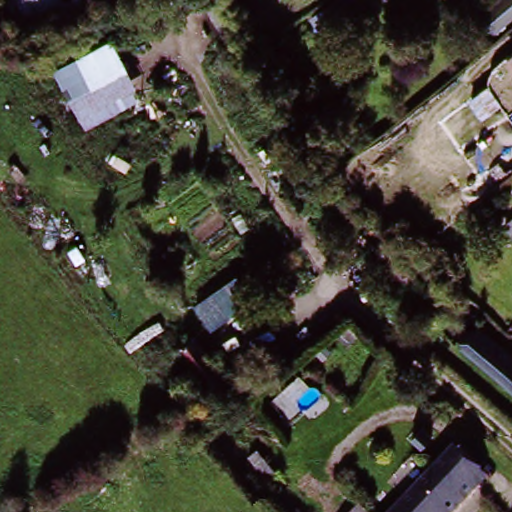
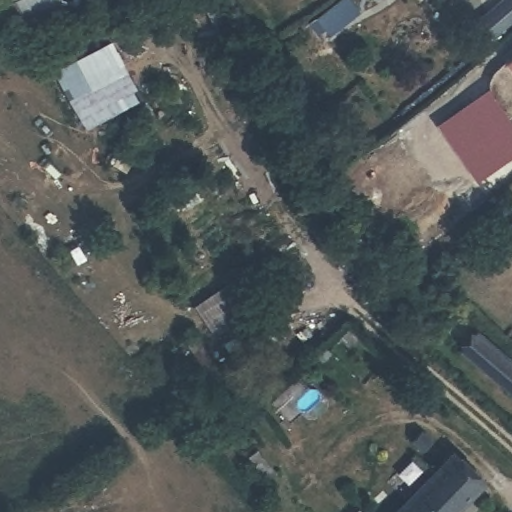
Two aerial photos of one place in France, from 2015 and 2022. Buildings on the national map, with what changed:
demolished [(21,0),(0,9),(0,0),(21,0)]
unchanged [(11,0),(36,0),(15,10),(11,0)]
new [(352,0),(363,14),(332,39),(321,25),(352,0)]
unchanged [(480,14),(497,0),(512,0),(512,16),(494,30),(480,14)]
unchanged [(141,100),(84,131),(53,72),(111,40),(141,100)]
unchanged [(512,59),(512,75),(505,66),(512,59)]
new [(512,120),(512,153),(475,179),(436,122),(486,85),(512,120)]
unchanged [(512,217),(512,238),(502,224),(512,217)]
unchanged [(255,304),(210,334),(190,303),(234,275),(255,304)]
unchanged [(512,363),(512,394),(467,354),(483,337),(512,363)]
unchanged [(191,338),(232,395),(215,408),(173,353),(191,338)]
unchanged [(410,430),(420,441),(408,451),(398,440),(410,430)]
unchanged [(443,461),(476,490),(457,512),(399,512),(443,461)]

